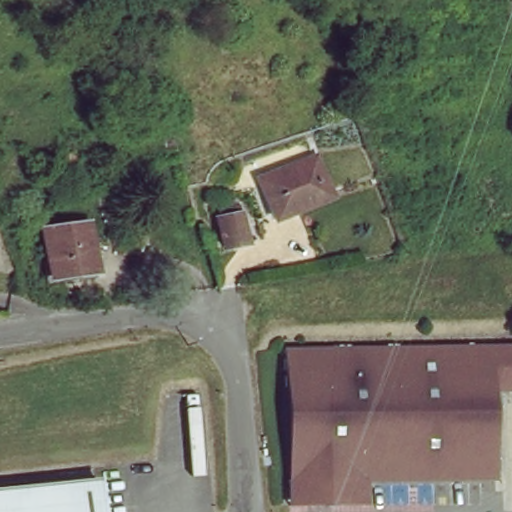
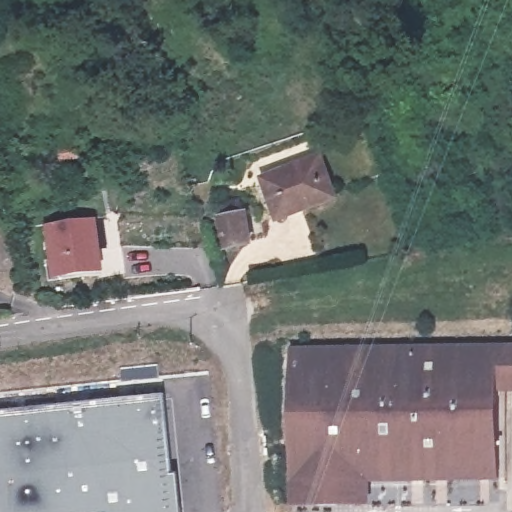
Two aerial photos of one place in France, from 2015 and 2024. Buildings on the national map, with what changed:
unchanged [(264,184),(291,173),(289,169),(317,157),(333,197),(277,219),(264,184)]
unchanged [(242,224),(244,224),(248,252),(226,256),(217,229),(221,227),(219,215),(238,211),(242,224)]
unchanged [(98,272),(52,277),(46,228),(91,222),(98,272)]
unchanged [(291,346),(512,346),(512,389),(495,389),(495,479),(375,481),(375,501),(291,504),(291,346)]
new [(169,478),(174,478),(177,512),(0,512),(0,414),(162,398),(169,478)]
demolished [(0,491),(101,481),(104,512),(0,512),(0,491)]

